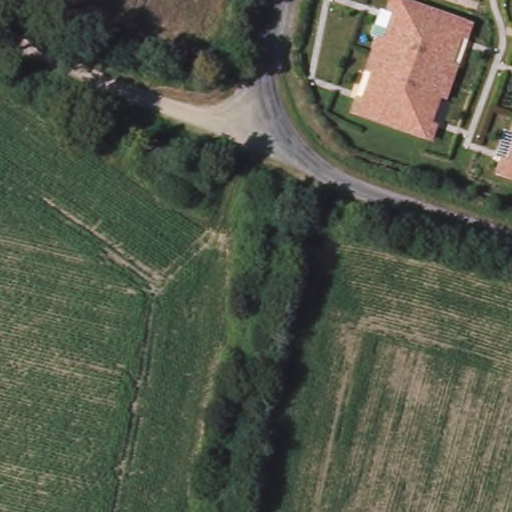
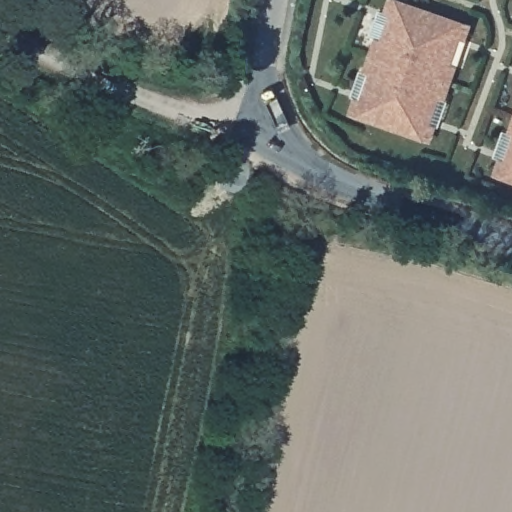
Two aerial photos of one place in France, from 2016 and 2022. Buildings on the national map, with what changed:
unchanged [(355,114),(393,0),(406,0),(473,23),(432,141),(355,114)]
unchanged [(499,176),(512,136),(512,181),(499,176)]

